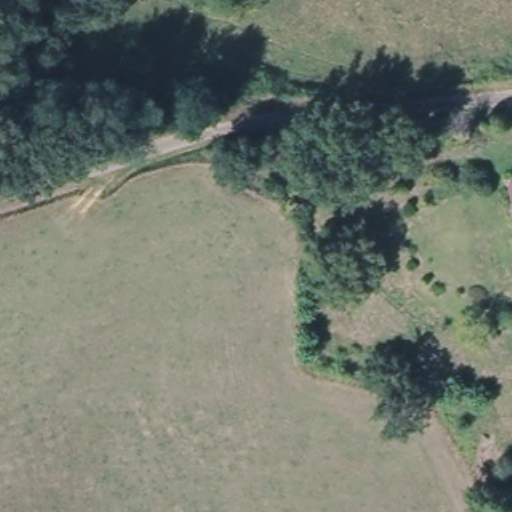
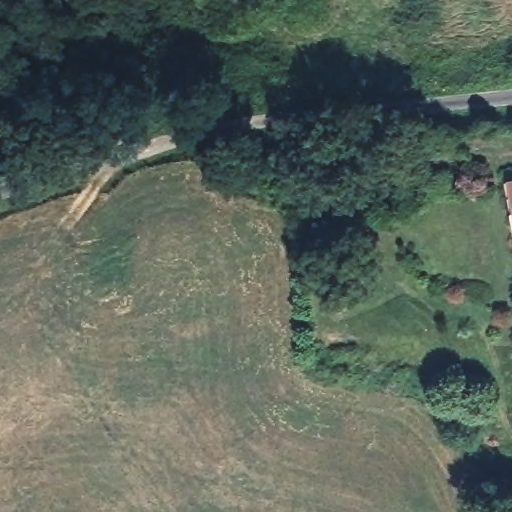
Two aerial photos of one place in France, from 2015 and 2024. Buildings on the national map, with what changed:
unchanged [(318,166),(324,194),(304,196),(298,170),(318,166)]
unchanged [(512,176),(512,192),(508,177),(512,176)]

